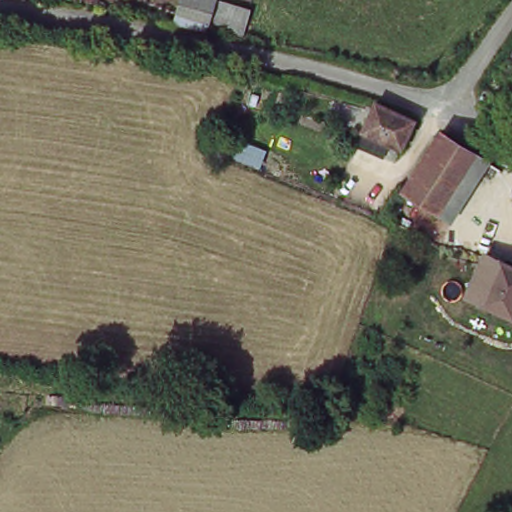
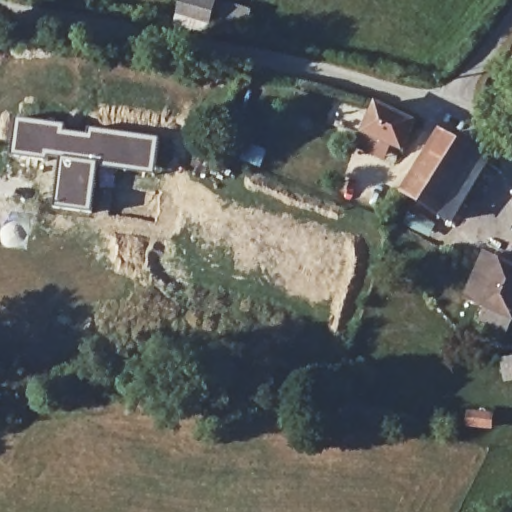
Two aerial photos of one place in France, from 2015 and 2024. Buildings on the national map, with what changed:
unchanged [(201,29),(172,22),(176,0),(246,0),(243,31),(203,23),(201,29)]
demolished [(238,137),(258,73),(299,84),(279,150),(238,137)]
unchanged [(361,140),(367,127),(380,100),(418,116),(403,145),(393,140),(387,152),(361,140)]
new [(17,117),(66,124),(65,130),(90,134),(91,127),(159,137),(154,174),(98,166),(99,162),(61,157),(60,161),(11,156),(17,117)]
unchanged [(456,195),(465,201),(454,219),(409,190),(445,133),(481,155),(456,195)]
unchanged [(275,163),(234,151),(238,137),(279,150),(275,163)]
new [(60,161),(61,157),(99,162),(98,166),(91,213),(54,208),(60,161)]
unchanged [(484,255),(512,267),(512,315),(467,295),(484,255)]

